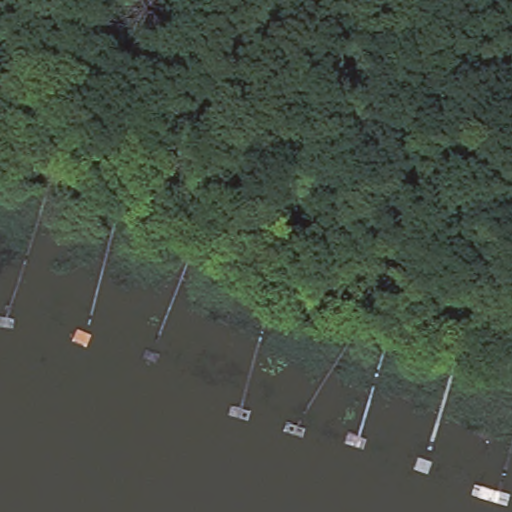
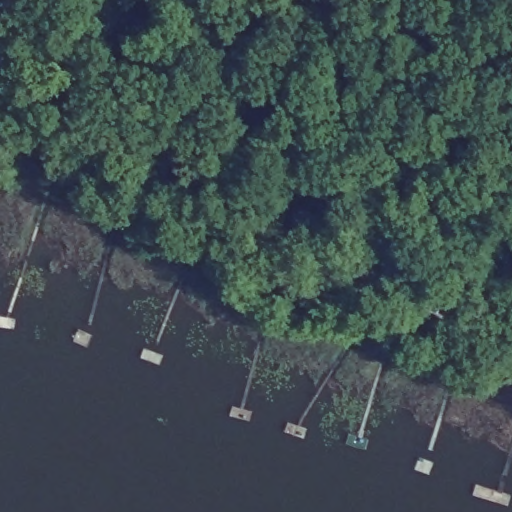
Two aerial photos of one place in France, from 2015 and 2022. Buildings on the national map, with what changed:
unchanged [(33,157),(0,147),(0,116),(34,129),(33,157)]

